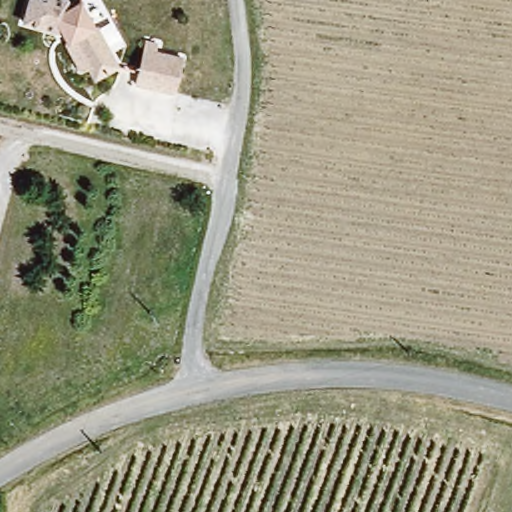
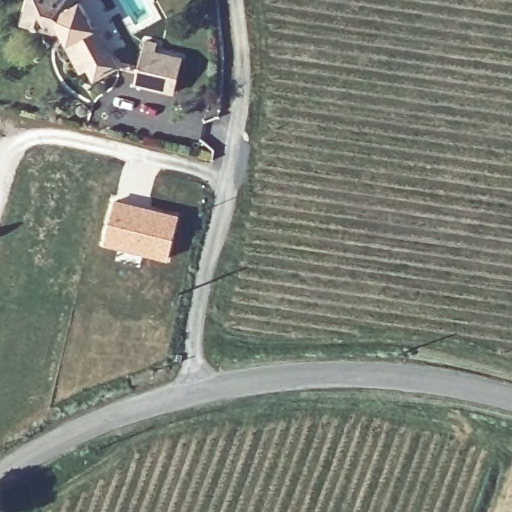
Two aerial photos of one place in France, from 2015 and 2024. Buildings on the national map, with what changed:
unchanged [(60,30),(51,30),(23,23),(29,0),(66,0),(70,6),(79,0),(125,56),(104,74),(96,66),(90,70),(71,44),(60,30)]
unchanged [(156,43),(155,52),(183,61),(174,93),(135,83),(146,43),(156,43)]
new [(115,198),(180,214),(168,261),(103,243),(115,198)]

